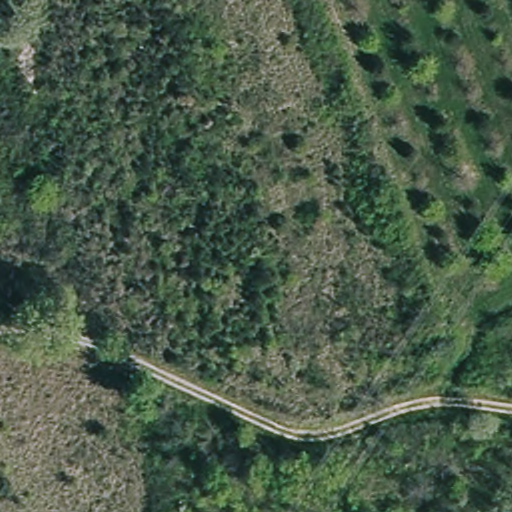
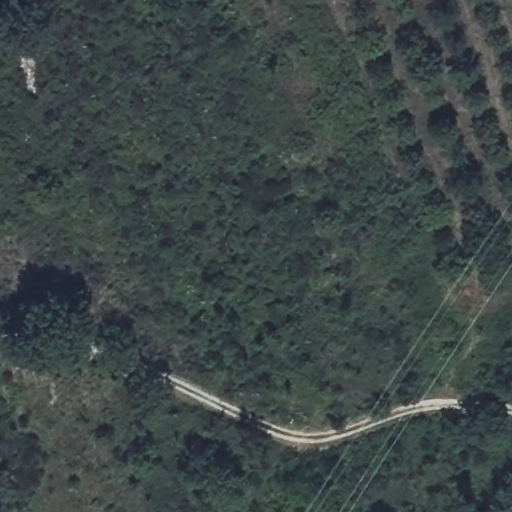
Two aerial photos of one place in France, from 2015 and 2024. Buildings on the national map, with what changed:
unchanged [(445,320),(453,342),(444,347),(435,351),(425,327),(435,323),(445,320)]

